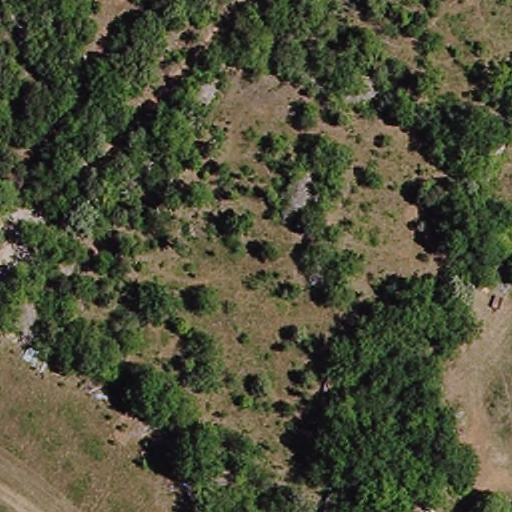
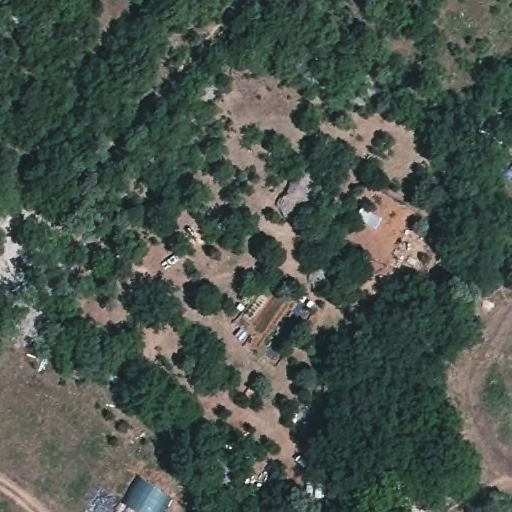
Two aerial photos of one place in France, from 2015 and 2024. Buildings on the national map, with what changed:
new [(172,497),(163,512),(119,512),(140,476),(172,497)]

